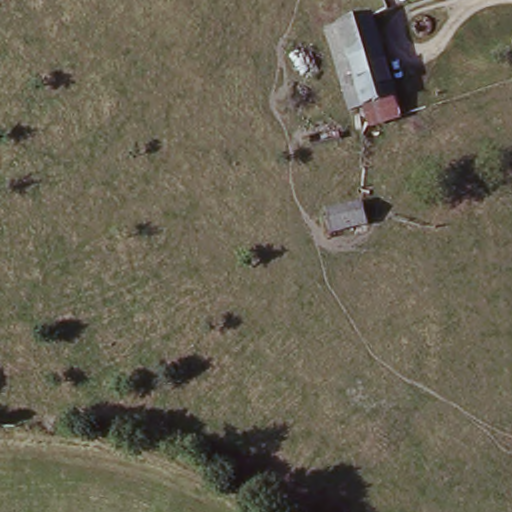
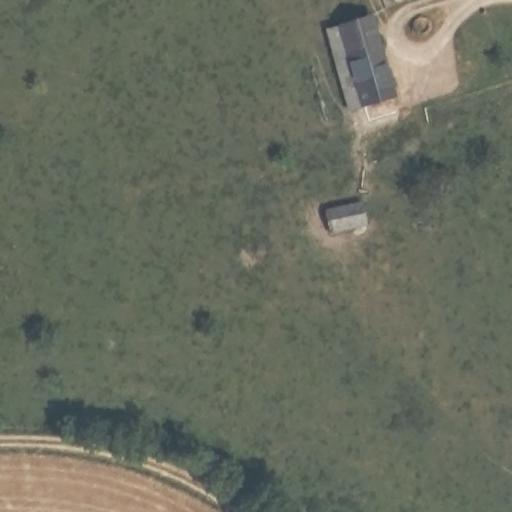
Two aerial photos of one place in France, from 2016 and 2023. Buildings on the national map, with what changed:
unchanged [(361,12),(395,102),(363,114),(328,22),(361,12)]
unchanged [(360,200),(368,222),(330,234),(324,210),(360,200)]

